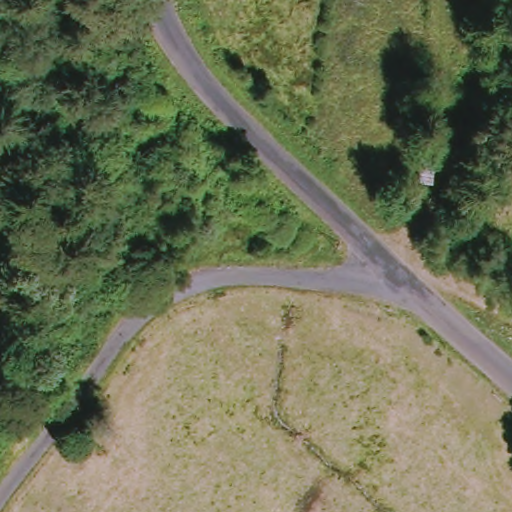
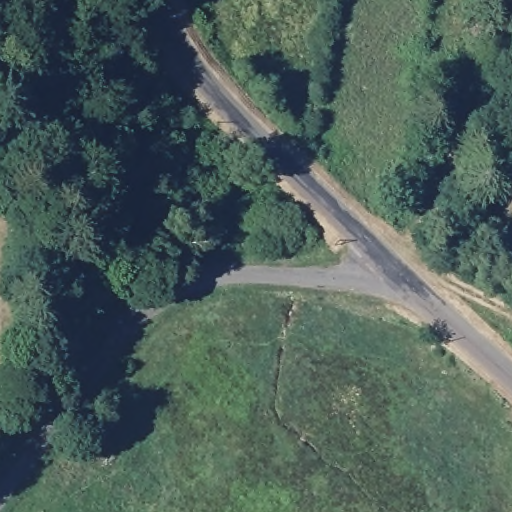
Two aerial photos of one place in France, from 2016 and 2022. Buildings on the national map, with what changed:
unchanged [(422,157),(435,158),(433,181),(420,180),(422,157)]

